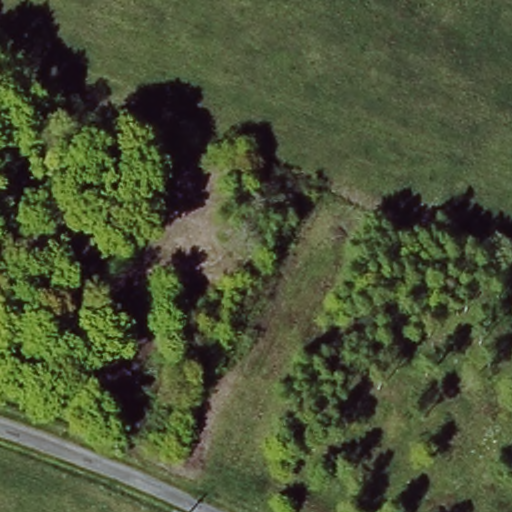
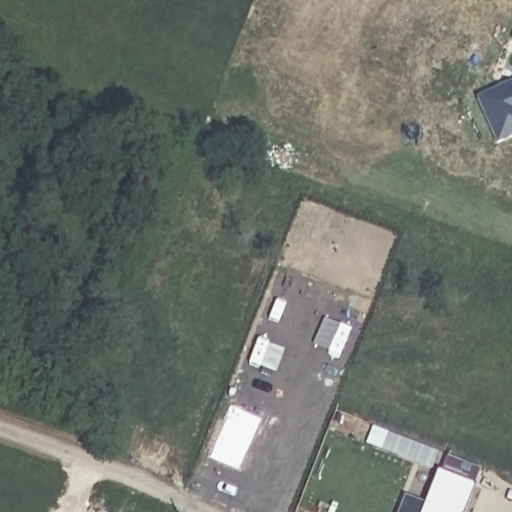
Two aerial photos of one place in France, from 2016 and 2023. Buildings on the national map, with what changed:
new [(498,141),(478,97),(512,81),(512,135),(498,141)]
new [(465,512),(399,512),(405,496),(425,502),(436,472),(441,474),(447,459),(481,471),(475,487),(465,512)]

